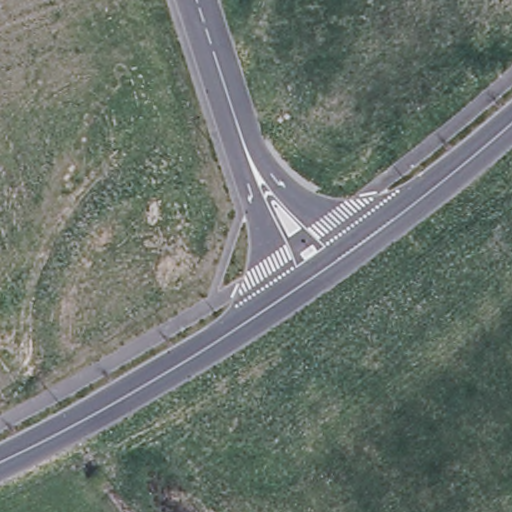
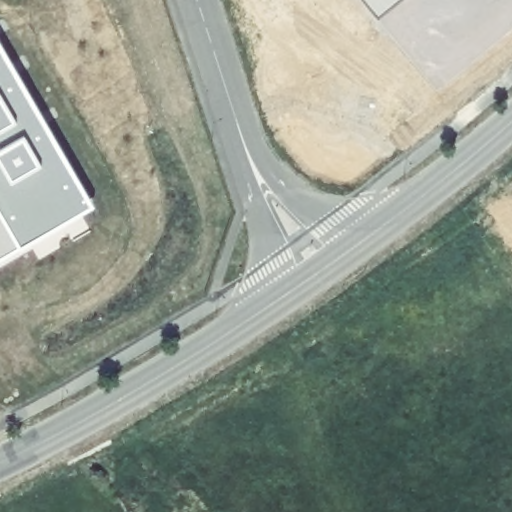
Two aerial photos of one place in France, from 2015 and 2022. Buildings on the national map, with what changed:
new [(364,0),(403,0),(380,19),(364,0)]
new [(94,209),(0,266),(0,49),(94,209)]

